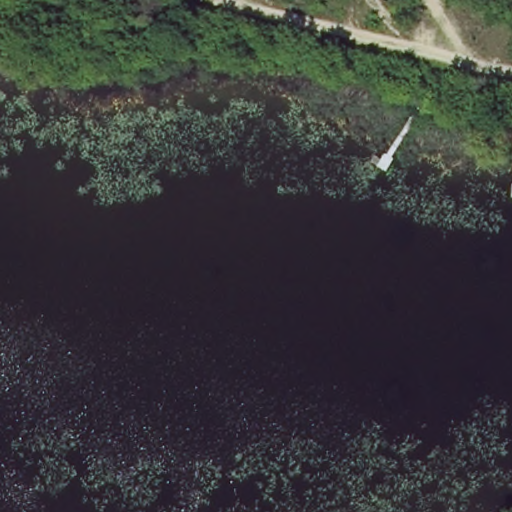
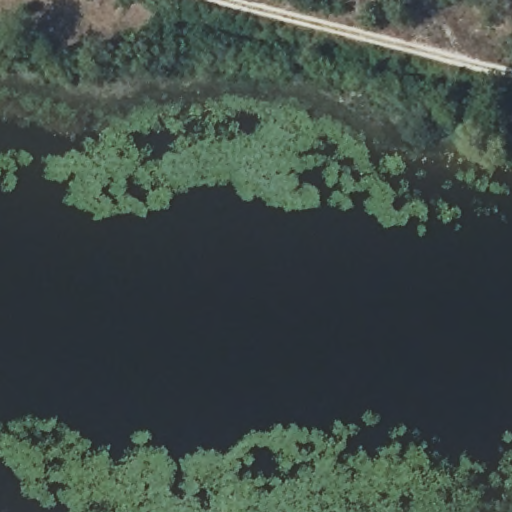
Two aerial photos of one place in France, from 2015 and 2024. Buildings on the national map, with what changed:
unchanged [(510,119),(510,105),(512,104),(512,118),(510,119)]

